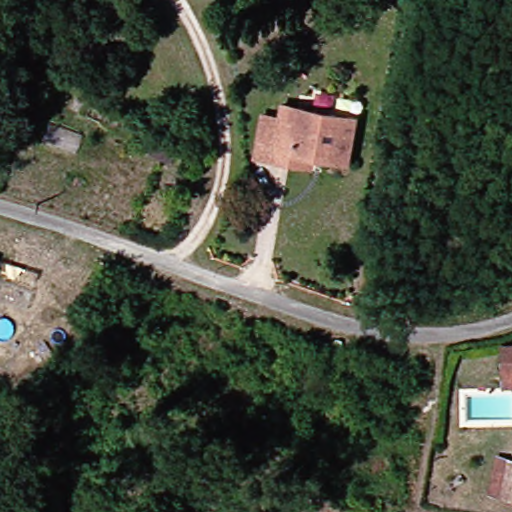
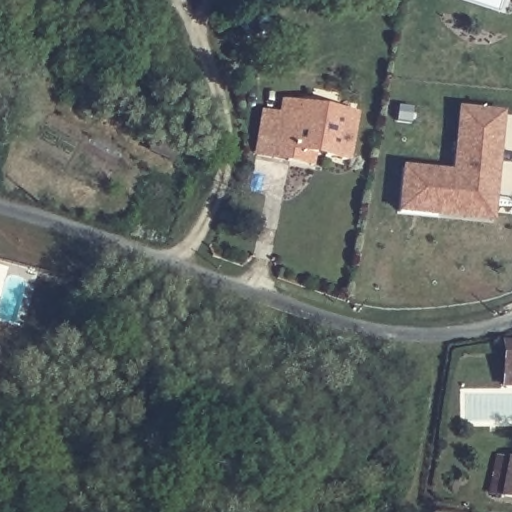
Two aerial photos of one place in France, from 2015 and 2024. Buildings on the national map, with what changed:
unchanged [(279,163),(262,160),(270,118),(287,120),(290,103),(346,114),(340,158),(312,152),(308,169),(279,163)]
new [(392,215),(396,167),(447,171),(452,112),(500,115),(492,221),(392,215)]
unchanged [(497,375),(500,336),(512,337),(512,376),(497,375)]
unchanged [(478,489),(484,450),(512,457),(512,496),(478,489)]

